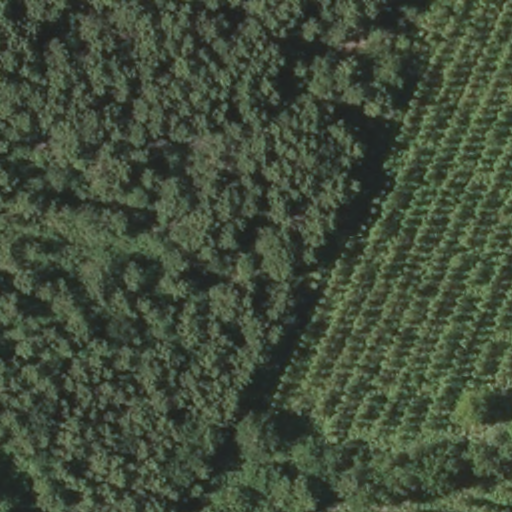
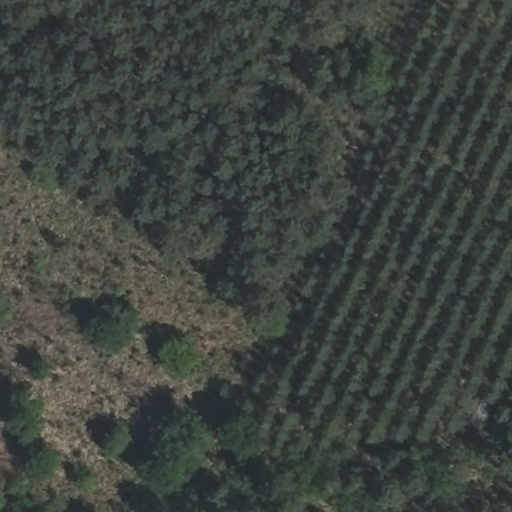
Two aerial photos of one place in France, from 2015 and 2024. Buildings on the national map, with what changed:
[]

